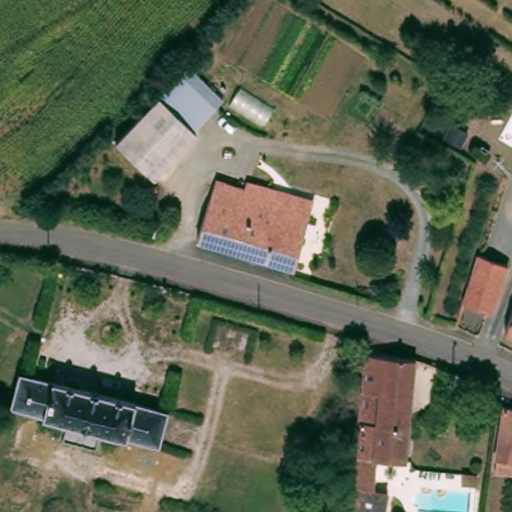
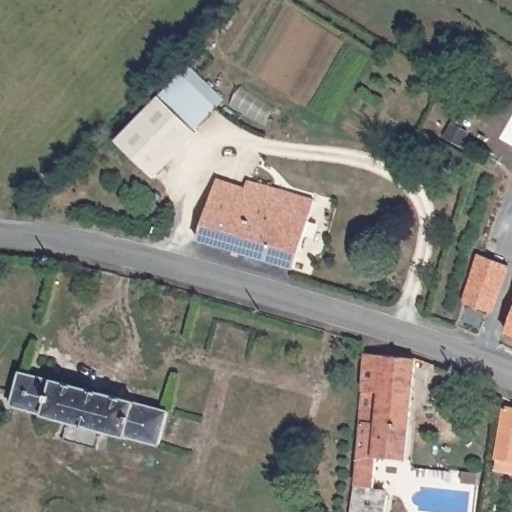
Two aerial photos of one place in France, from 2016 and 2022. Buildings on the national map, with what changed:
unchanged [(158,93),(159,91),(179,71),(215,104),(194,126),(158,93)]
unchanged [(154,97),(158,93),(194,126),(196,128),(153,174),(114,139),(154,97)]
unchanged [(440,120),(430,115),(436,103),(446,108),(440,120)]
unchanged [(196,239),(215,180),(244,190),(247,181),(313,202),(294,269),(196,239)]
unchanged [(478,256),(509,266),(493,313),(463,303),(478,256)]
unchanged [(505,326),(512,309),(512,329),(505,326)]
unchanged [(375,458),(372,489),(385,498),(384,512),(351,512),(353,483),(359,427),(364,355),(414,360),(404,461),(375,458)]
unchanged [(161,443),(134,436),(126,434),(126,438),(43,415),(43,413),(11,404),(14,391),(19,372),(51,381),(52,379),(144,403),(171,410),(161,443)]
unchanged [(494,471),(504,408),(512,410),(512,474),(494,471)]

